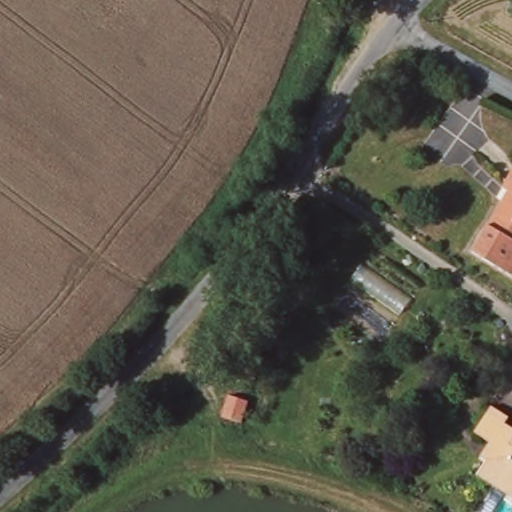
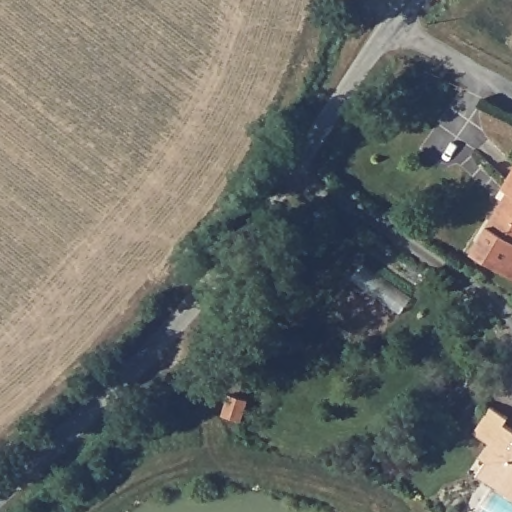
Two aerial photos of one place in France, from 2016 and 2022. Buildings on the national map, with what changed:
unchanged [(504,187),(512,172),(512,191),(507,189),(504,187)]
unchanged [(506,195),(502,192),(504,187),(507,189),(512,191),(512,278),(473,255),(506,195)]
unchanged [(480,475),(498,446),(492,442),(489,446),(473,438),(490,408),(506,417),(505,422),(512,427),(512,494),(498,486),(480,475)]

